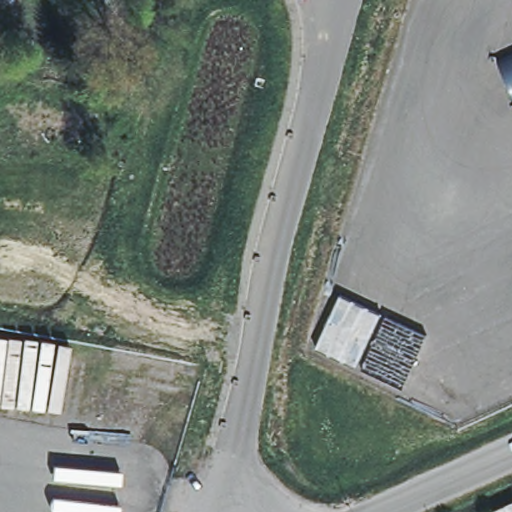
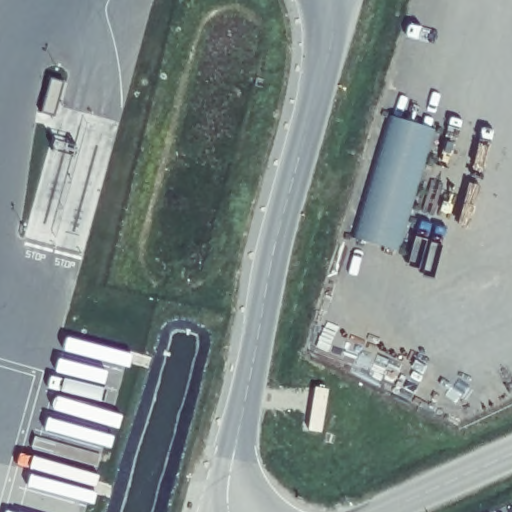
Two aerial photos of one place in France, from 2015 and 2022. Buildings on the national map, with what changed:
new [(433,135),(400,250),(351,234),(383,119),(433,135)]

